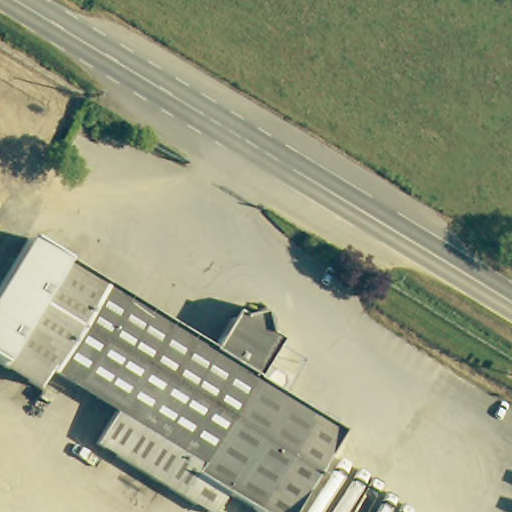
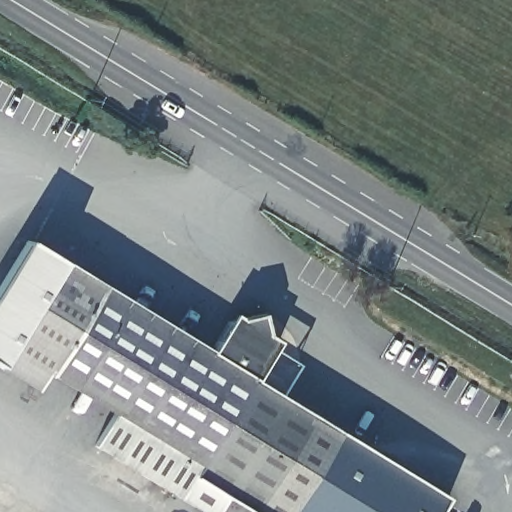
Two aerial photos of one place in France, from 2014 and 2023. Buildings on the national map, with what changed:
unchanged [(6,363),(0,362),(0,282),(27,238),(62,262),(65,267),(6,363)]
unchanged [(191,512),(90,450),(111,415),(44,375),(34,392),(1,372),(6,363),(65,267),(104,291),(210,356),(230,323),(239,322),(258,317),(263,338),(275,345),(260,371),(278,382),(280,390),(275,397),(315,422),(338,436),(291,512),(240,512),(221,500),(214,512),(191,512)]
new [(291,512),(338,436),(447,499),(439,512),(291,512)]

